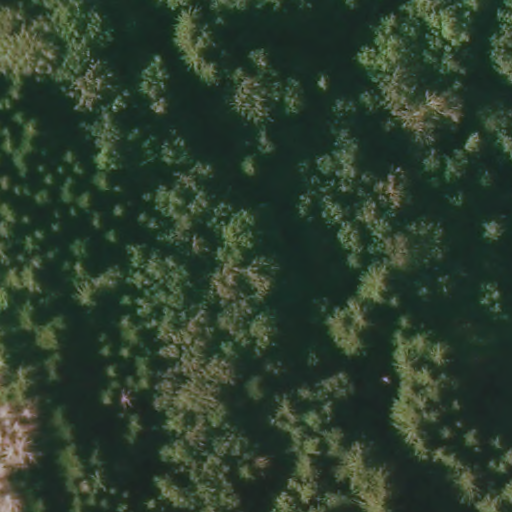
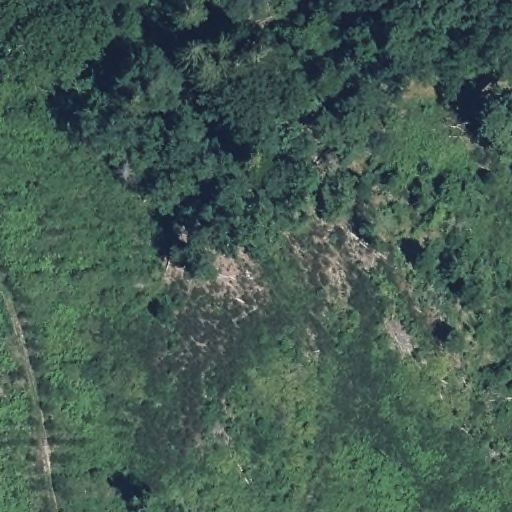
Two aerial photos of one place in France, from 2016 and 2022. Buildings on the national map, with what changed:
[]

